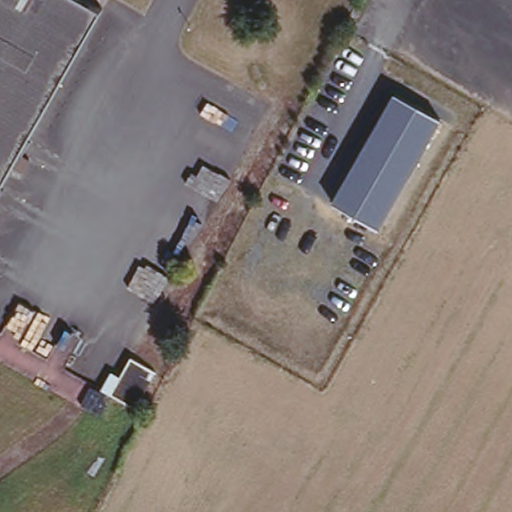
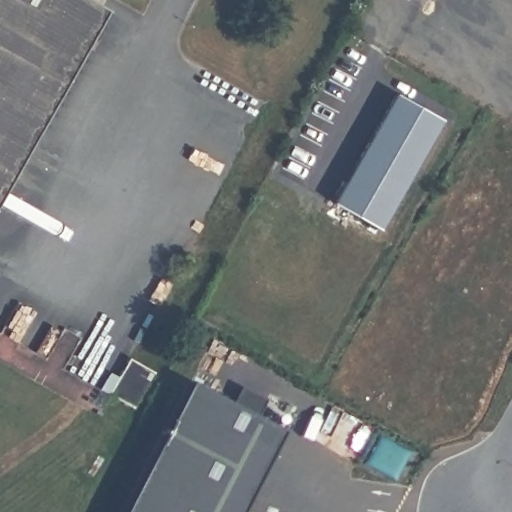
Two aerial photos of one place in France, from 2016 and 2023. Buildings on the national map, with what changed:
unchanged [(0,181),(0,0),(101,0),(0,181)]
unchanged [(444,118),(382,229),(332,202),(394,93),(444,118)]
unchanged [(156,371),(134,411),(100,393),(110,373),(120,377),(130,359),(156,371)]
new [(236,510),(241,512),(119,512),(191,380),(280,424),(236,510)]

